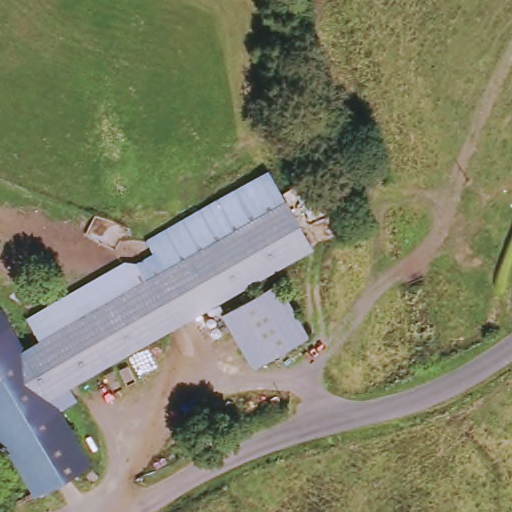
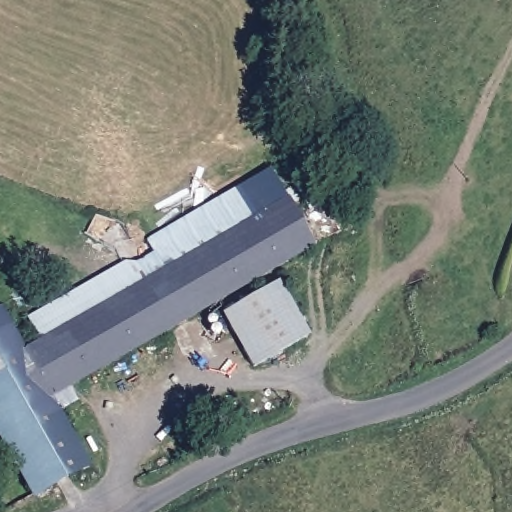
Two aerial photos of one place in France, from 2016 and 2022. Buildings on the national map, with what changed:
unchanged [(30,350),(45,341),(35,320),(133,263),(143,267),(159,257),(153,242),(273,175),(319,253),(60,401),(30,350)]
unchanged [(309,189),(316,202),(302,210),(294,196),(309,189)]
unchanged [(286,288),(318,338),(264,370),(232,321),(286,288)]
unchanged [(48,495),(0,410),(0,315),(8,311),(30,350),(60,401),(98,467),(48,495)]

